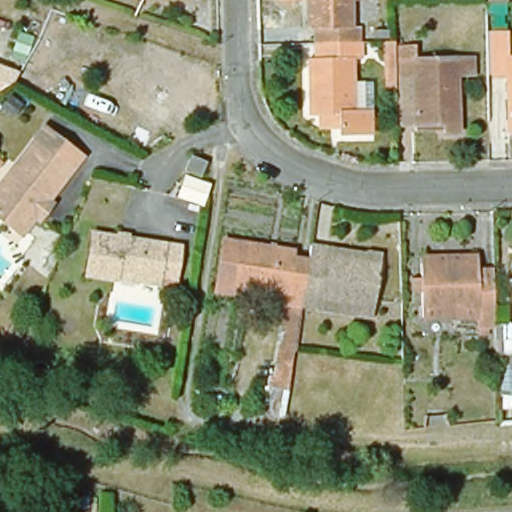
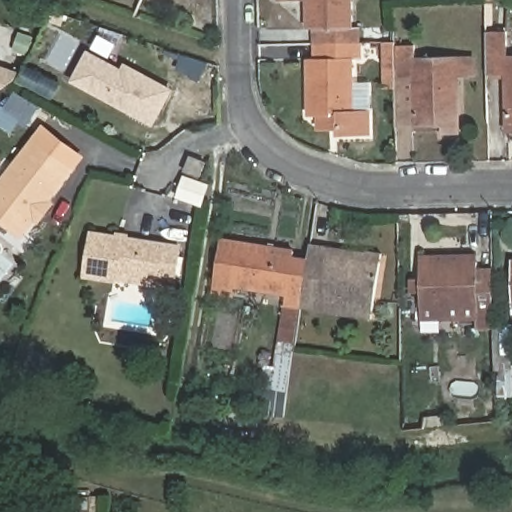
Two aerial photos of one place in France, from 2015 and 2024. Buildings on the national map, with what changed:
unchanged [(350,43),(328,43),(320,44),(315,44),(315,27),(306,27),(306,0),(350,0),(350,27),(360,27),(360,42),(350,43)]
unchanged [(485,37),(505,37),(505,61),(512,61),(512,129),(507,129),(506,80),(486,80),(485,37)]
unchanged [(360,61),(351,61),(352,114),(368,114),(368,134),(338,135),(338,122),(317,122),(317,113),(309,113),(309,60),(315,60),(315,44),(320,44),(328,43),(350,43),(360,42),(360,61)]
unchanged [(395,106),(395,91),(394,76),(394,62),(393,51),(413,51),(413,64),(458,64),(475,63),(475,81),(458,81),(459,137),(443,137),(443,129),(395,129),(395,120),(395,106)]
new [(88,52),(122,71),(125,65),(170,89),(152,121),(74,79),(88,52)]
new [(16,93),(39,109),(29,124),(5,108),(16,93)]
unchanged [(0,181),(8,171),(35,139),(46,124),(85,154),(73,169),(21,237),(0,220),(0,181)]
unchanged [(204,181),(189,175),(195,161),(210,167),(204,181)]
unchanged [(211,190),(201,208),(180,197),(189,179),(211,190)]
unchanged [(81,274),(88,234),(175,248),(170,278),(169,290),(150,287),(110,280),(81,274)]
unchanged [(313,263),(308,293),(305,307),(288,304),(290,295),(237,286),(236,296),(219,292),(227,238),(298,250),(297,257),(313,260),(313,263)]
unchanged [(327,262),(328,254),(383,263),(376,307),(322,298),(320,310),(305,307),(308,293),(313,263),(313,260),(327,262)]
unchanged [(427,325),(427,264),(480,264),(480,275),(497,275),(498,324),(427,325)]
unchanged [(291,392),(272,388),(288,304),(305,307),(291,392)]

